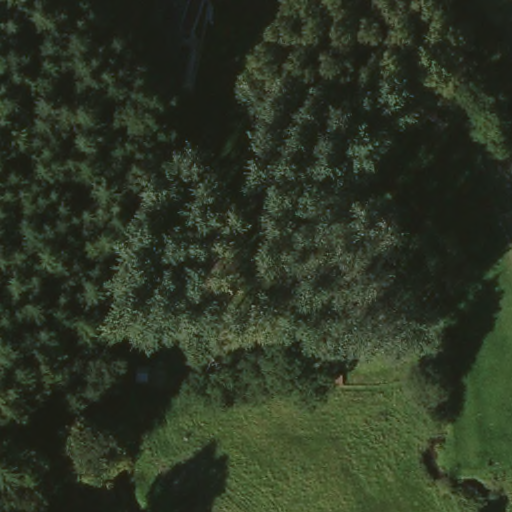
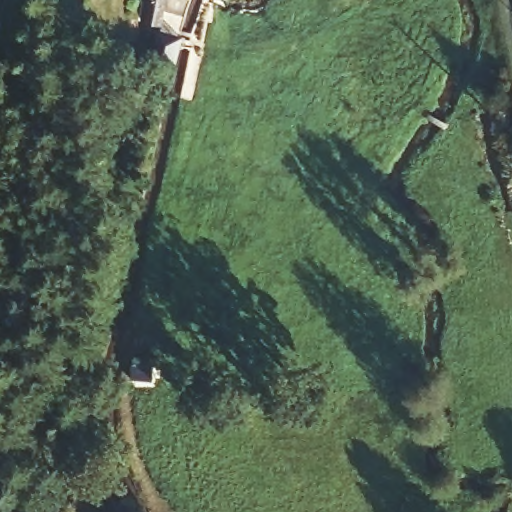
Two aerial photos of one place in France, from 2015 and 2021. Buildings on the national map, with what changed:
unchanged [(156,23),(158,10),(144,8),(145,0),(175,0),(172,25),(156,23)]
unchanged [(189,63),(179,61),(163,58),(169,31),(184,34),(194,36),(189,63)]

